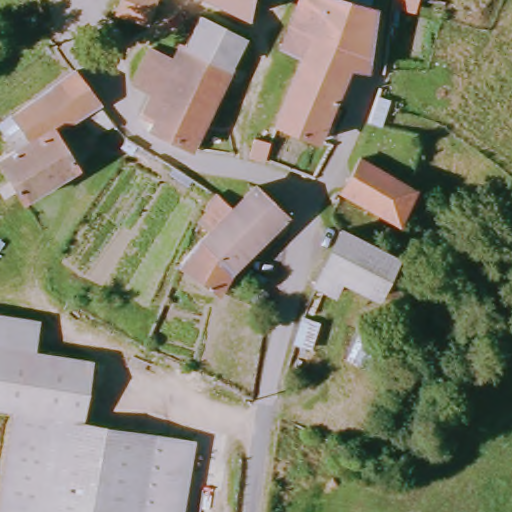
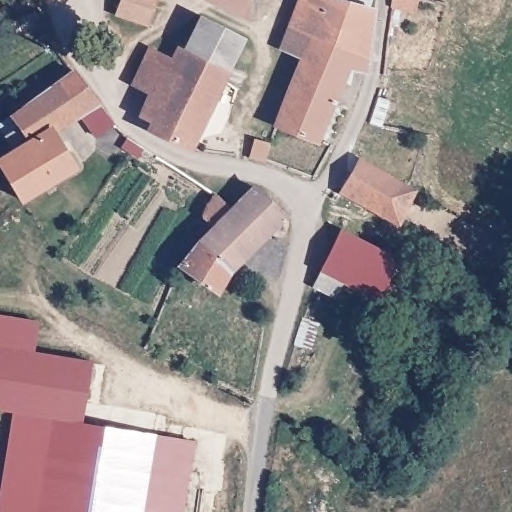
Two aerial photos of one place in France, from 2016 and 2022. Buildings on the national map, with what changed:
unchanged [(122,0),(159,0),(149,32),(117,19),(122,0)]
unchanged [(251,19),(210,0),(256,0),(251,19)]
unchanged [(364,69),(353,66),(349,79),(341,74),(318,140),(271,122),(299,56),(279,46),(296,2),(297,0),(362,0),(371,2),(364,69)]
unchanged [(419,15),(396,9),(397,0),(422,0),(419,15)]
unchanged [(187,41),(189,37),(200,14),(247,34),(233,60),(187,41)]
unchanged [(139,75),(157,35),(185,47),(168,86),(153,81),(139,75)]
unchanged [(149,121),(155,110),(144,103),(153,81),(168,86),(185,47),(187,41),(233,60),(193,142),(149,121)]
unchanged [(0,163),(0,159),(31,136),(15,109),(80,69),(116,115),(97,127),(82,109),(56,128),(76,160),(26,198),(0,163)]
unchanged [(376,107),(388,112),(380,135),(368,131),(376,107)]
unchanged [(261,150),(259,155),(242,152),(250,128),(266,135),(261,150)]
unchanged [(345,196),(357,162),(413,192),(400,225),(345,196)]
unchanged [(275,225),(239,265),(225,291),(183,265),(199,237),(204,237),(247,192),(258,185),(293,215),(286,232),(275,225)]
unchanged [(330,294),(314,282),(317,277),(343,226),(398,257),(379,297),(342,275),(333,289),(330,294)]
unchanged [(0,408),(0,314),(41,321),(35,350),(94,360),(81,423),(196,441),(184,512),(0,512),(0,503),(18,411),(0,408)]

